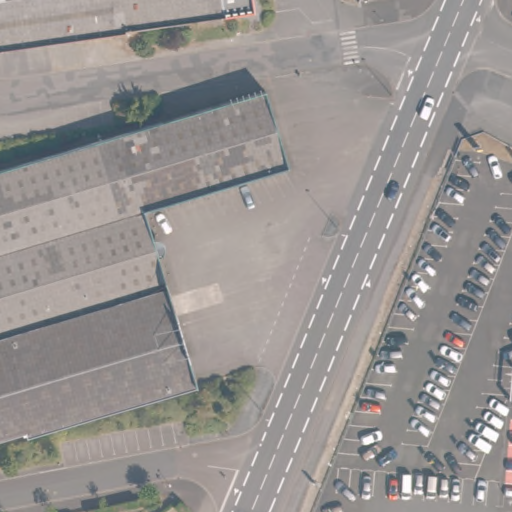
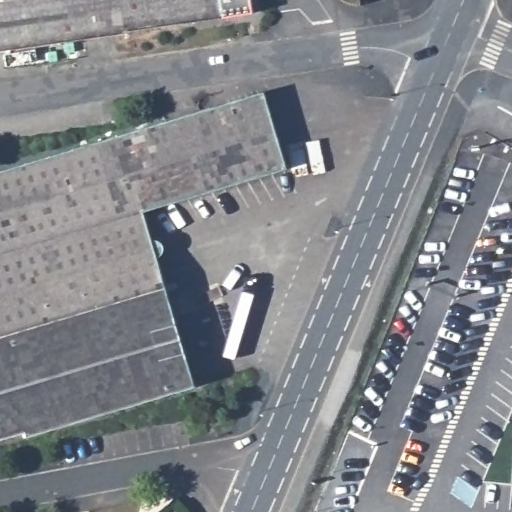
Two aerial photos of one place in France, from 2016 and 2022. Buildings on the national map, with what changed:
unchanged [(252,0),(254,13),(0,49),(0,0),(252,0)]
unchanged [(265,90),(289,169),(146,212),(198,386),(29,436),(27,431),(0,440),(0,169),(265,90)]

